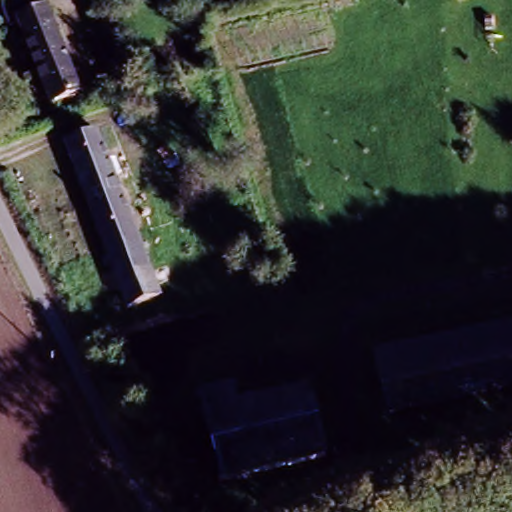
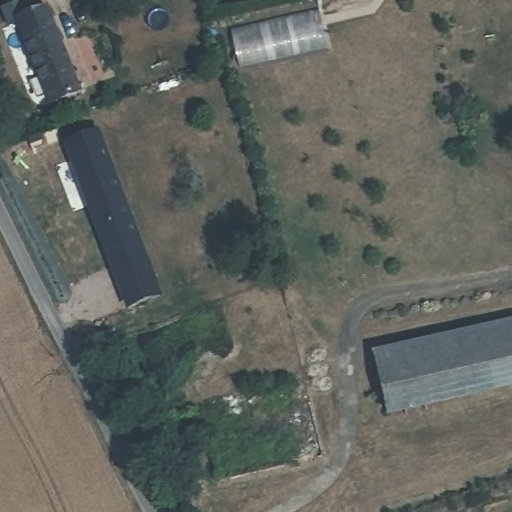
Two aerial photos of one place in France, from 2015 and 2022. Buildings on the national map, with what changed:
unchanged [(51,99),(22,14),(48,5),(77,90),(51,99)]
new [(318,10),(327,50),(241,65),(232,29),(318,10)]
unchanged [(99,125),(157,293),(125,304),(67,136),(99,125)]
unchanged [(512,324),(512,367),(382,391),(375,349),(512,324)]

